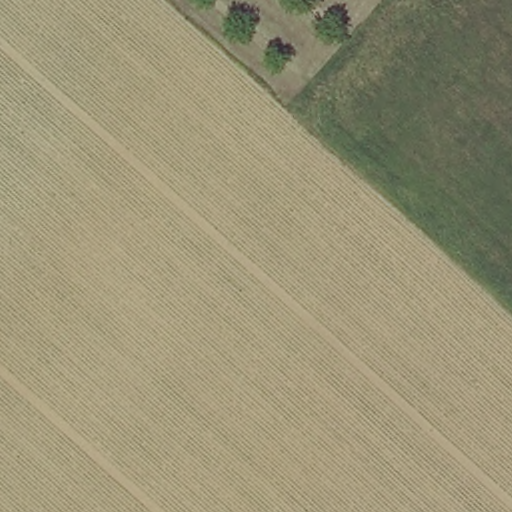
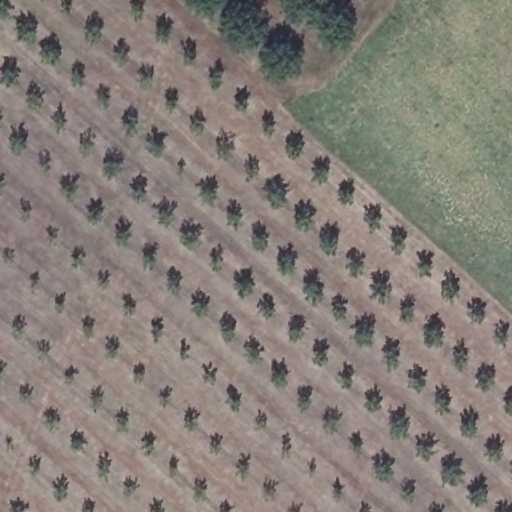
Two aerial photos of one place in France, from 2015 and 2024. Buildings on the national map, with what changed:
[]

